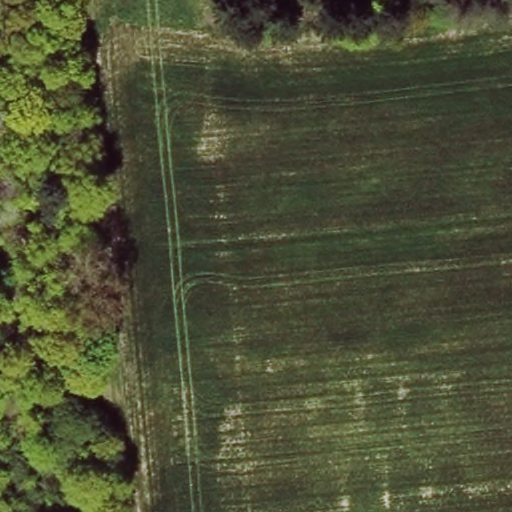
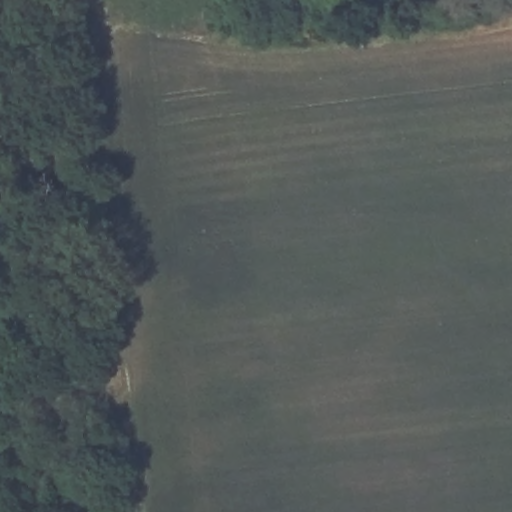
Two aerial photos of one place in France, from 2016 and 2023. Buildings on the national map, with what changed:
[]

